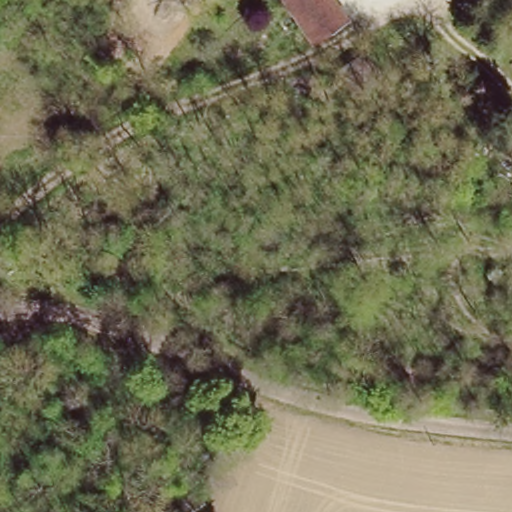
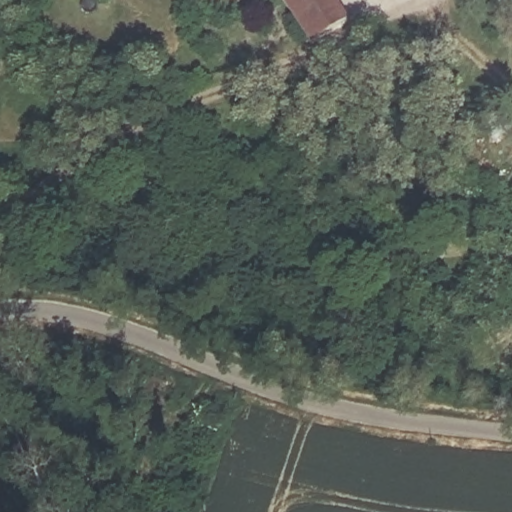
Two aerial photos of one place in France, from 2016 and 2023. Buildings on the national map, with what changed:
unchanged [(337,0),(350,24),(320,35),(319,35),(300,0),(337,0)]
unchanged [(500,30),(488,10),(477,16),(468,0),(510,0),(512,4),(512,23),(500,30)]
unchanged [(385,71),(353,91),(337,65),(368,45),(385,71)]

